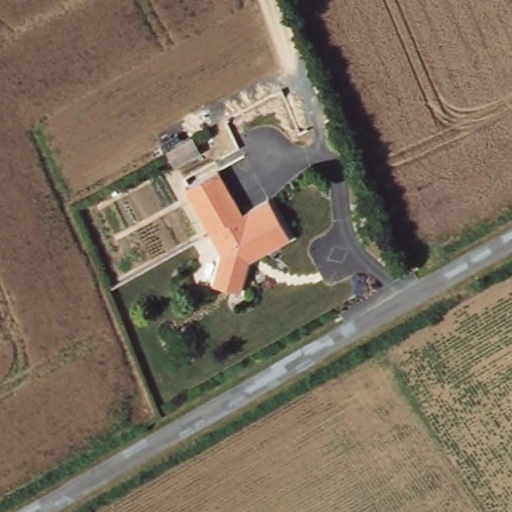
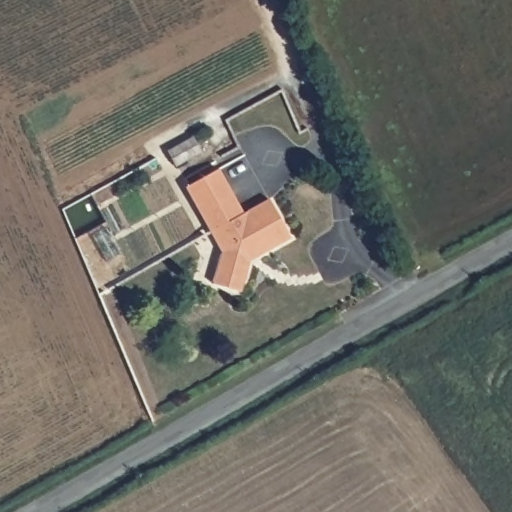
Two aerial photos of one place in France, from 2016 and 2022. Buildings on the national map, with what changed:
unchanged [(220,165),(244,209),(271,195),(291,234),(252,255),(243,288),(211,279),(220,247),(185,185),(220,165)]

